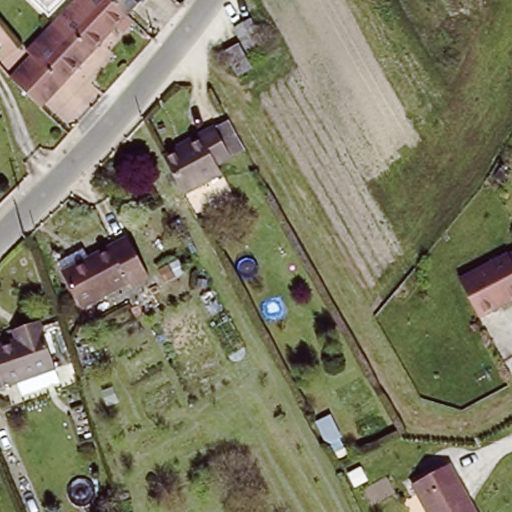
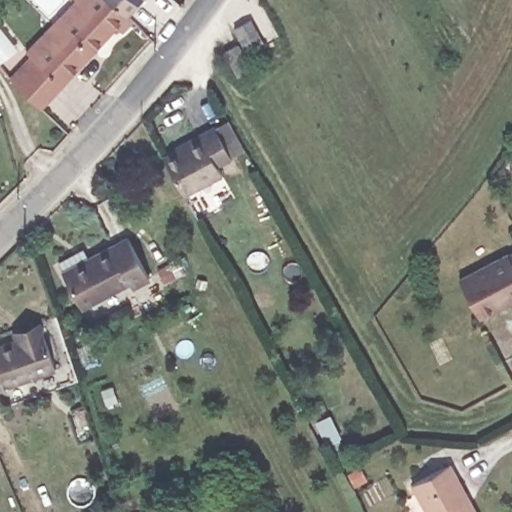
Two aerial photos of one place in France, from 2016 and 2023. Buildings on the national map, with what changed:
unchanged [(121,31),(116,27),(40,108),(12,81),(32,58),(27,54),(76,0),(111,0),(132,20),(121,31)]
unchanged [(137,5),(141,10),(132,20),(111,0),(141,0),(137,5)]
unchanged [(237,76),(223,53),(240,44),(232,30),(249,21),(263,46),(245,55),(252,67),(237,76)]
unchanged [(163,162),(200,142),(199,139),(213,131),(230,162),(215,170),(220,179),(183,200),(163,162)]
unchanged [(127,238),(149,278),(131,288),(128,282),(80,308),(62,273),(127,238)]
unchanged [(512,298),(475,318),(455,281),(502,255),(512,272),(512,298)]
unchanged [(2,390),(2,392),(0,392),(0,348),(13,344),(10,335),(35,327),(37,331),(51,373),(2,390)]
unchanged [(467,503),(472,512),(422,512),(407,485),(445,464),(462,493),(467,503)]

